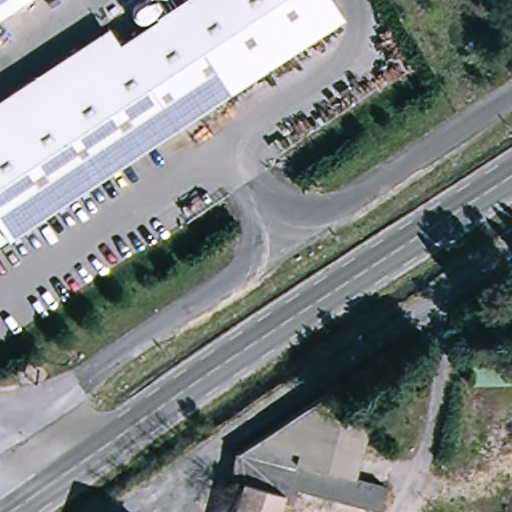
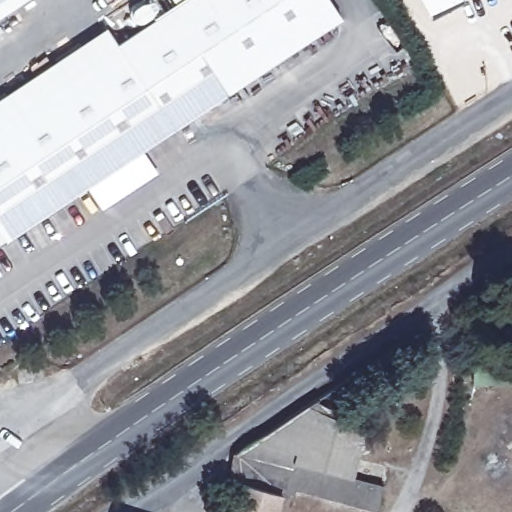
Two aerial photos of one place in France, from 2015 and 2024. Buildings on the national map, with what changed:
unchanged [(0,15),(0,0),(23,0),(0,15)]
unchanged [(184,0),(331,0),(343,19),(0,240),(0,119),(118,43),(184,0)]
new [(421,0),(464,0),(465,2),(431,19),(421,0)]
unchanged [(108,27),(118,43),(0,119),(0,97),(108,27)]
unchanged [(512,360),(512,385),(473,386),(473,375),(473,362),(512,360)]
unchanged [(249,457),(241,455),(242,449),(310,406),(368,427),(354,478),(383,486),(377,512),(296,491),(292,506),(280,502),(277,512),(232,512),(241,481),(249,457)]

